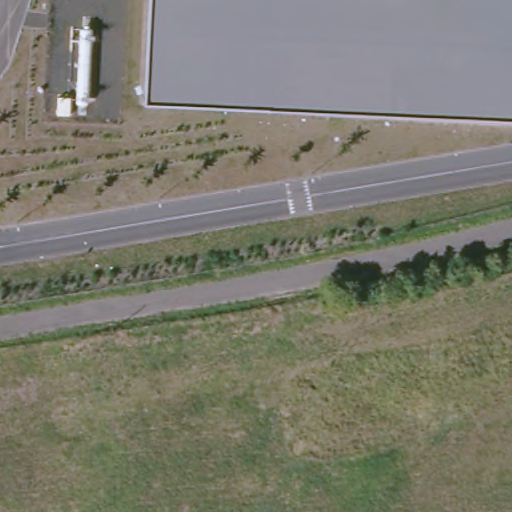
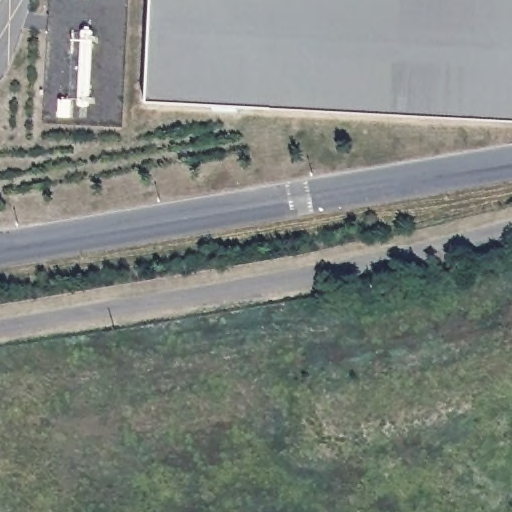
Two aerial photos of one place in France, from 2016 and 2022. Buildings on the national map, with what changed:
unchanged [(146,105),(152,0),(512,0),(512,122),(146,105)]

